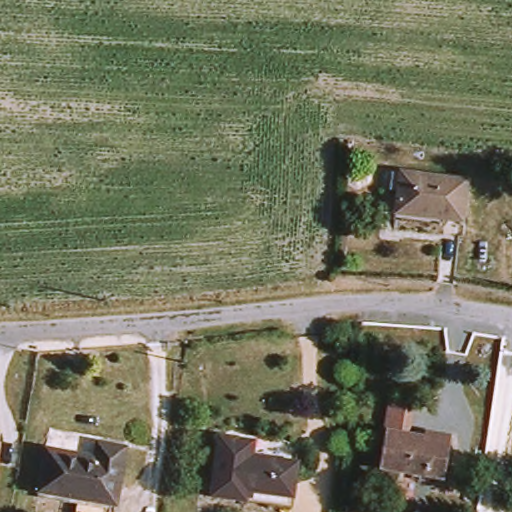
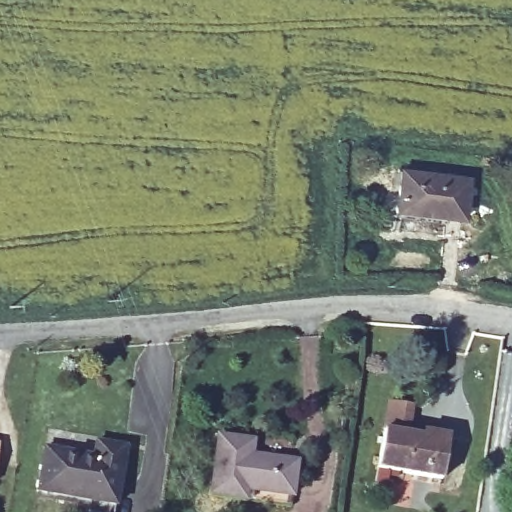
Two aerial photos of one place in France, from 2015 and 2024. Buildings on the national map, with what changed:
unchanged [(478,183),(473,222),(404,213),(410,174),(478,183)]
unchanged [(387,467),(398,429),(437,437),(438,431),(462,436),(460,442),(453,481),(387,467)]
unchanged [(250,495),(216,489),(229,434),(263,438),(261,450),(304,457),(299,490),(297,503),(250,495)]
unchanged [(101,452),(104,439),(133,445),(123,498),(49,485),(55,444),(101,452)]

